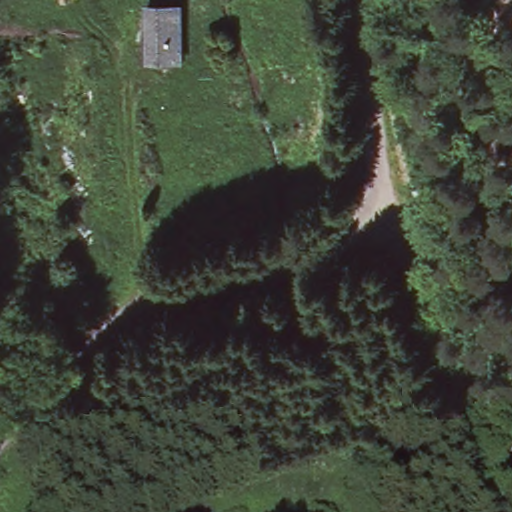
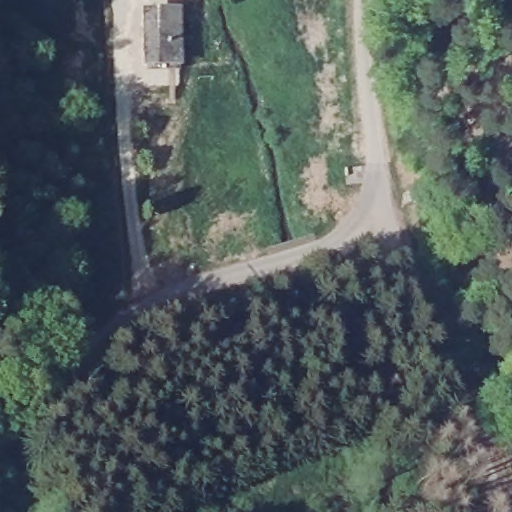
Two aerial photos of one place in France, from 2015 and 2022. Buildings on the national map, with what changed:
unchanged [(184,12),(184,63),(150,63),(150,12),(184,12)]

